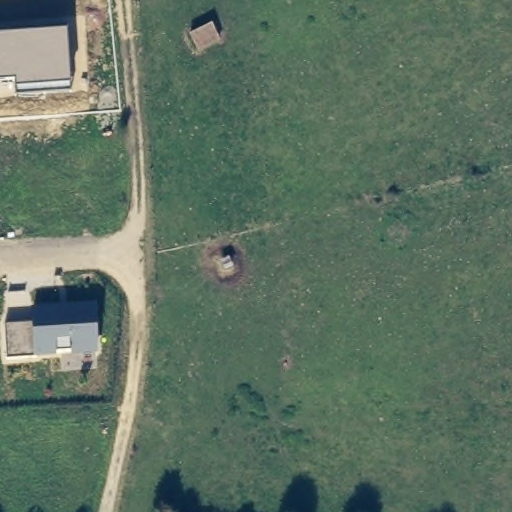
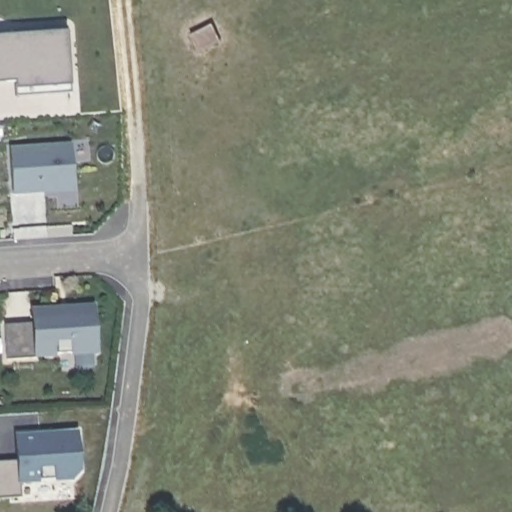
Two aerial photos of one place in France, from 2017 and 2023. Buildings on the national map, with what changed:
unchanged [(213,21),(225,41),(198,53),(191,32),(213,21)]
unchanged [(70,91),(15,95),(14,80),(0,80),(0,32),(67,30),(70,91)]
new [(69,147),(72,189),(43,190),(43,192),(12,195),(9,150),(69,147)]
unchanged [(98,353),(7,360),(4,325),(31,322),(31,307),(94,303),(98,353)]
new [(0,461),(16,459),(14,434),(77,430),(81,469),(73,480),(20,483),(21,495),(0,497),(0,461)]

